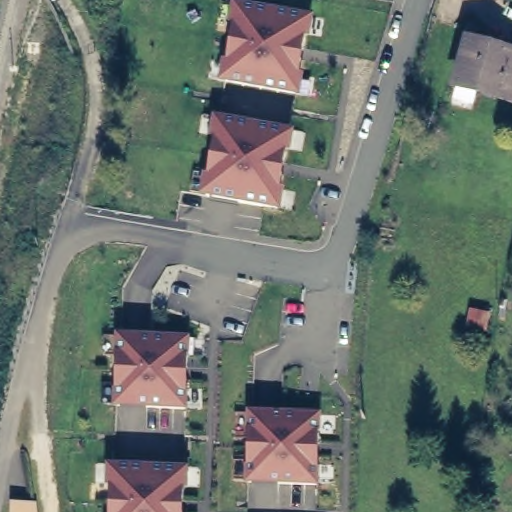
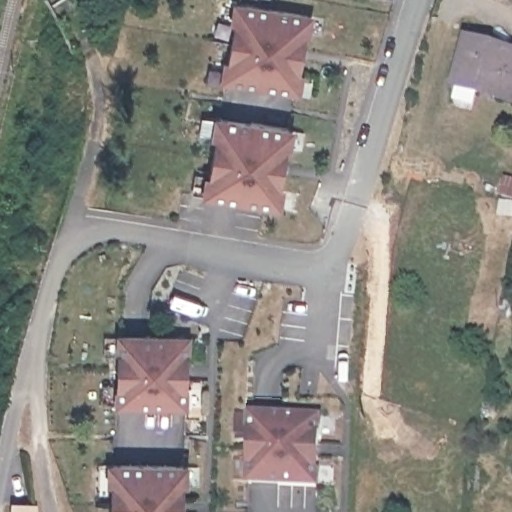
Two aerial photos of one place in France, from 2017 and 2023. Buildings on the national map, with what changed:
unchanged [(309,42),(302,42),(297,75),(303,76),(301,96),(218,84),(222,60),(227,61),(232,26),(228,25),(232,2),(313,15),(309,42)]
unchanged [(475,36),(512,46),(512,93),(465,79),(475,36)]
unchanged [(291,157),(285,157),(282,187),(285,188),(282,211),(200,197),(202,172),(208,174),(213,140),(209,140),(212,117),(294,130),(291,157)]
unchanged [(188,411),(113,406),(113,383),(117,382),(117,355),(113,354),(115,332),(190,336),(190,361),(186,361),(186,388),(189,388),(188,411)]
unchanged [(322,438),(318,439),(317,465),(322,465),(322,487),(245,487),(245,463),(248,463),(249,429),(245,429),(246,412),(322,412),(322,438)]
unchanged [(183,495),(183,512),(108,512),(108,485),(105,486),(107,465),(188,466),(187,495),(183,495)]
unchanged [(42,509),(42,512),(18,512),(18,511),(42,509)]

